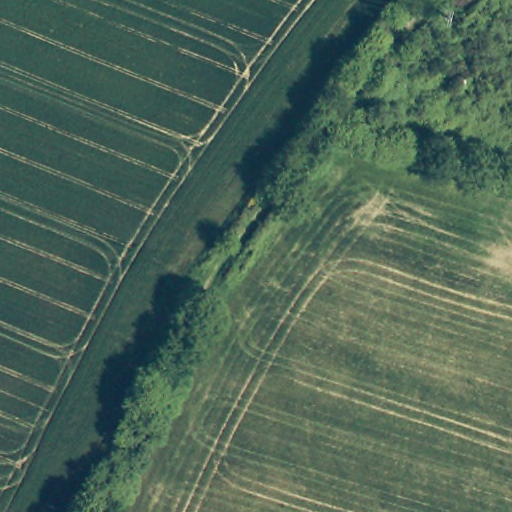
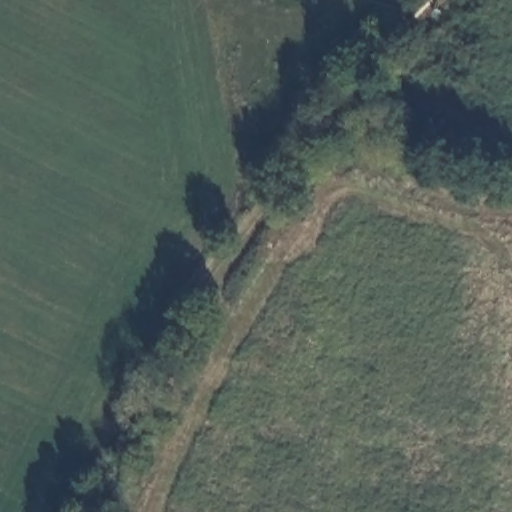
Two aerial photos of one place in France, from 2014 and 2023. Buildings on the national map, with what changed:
[]

